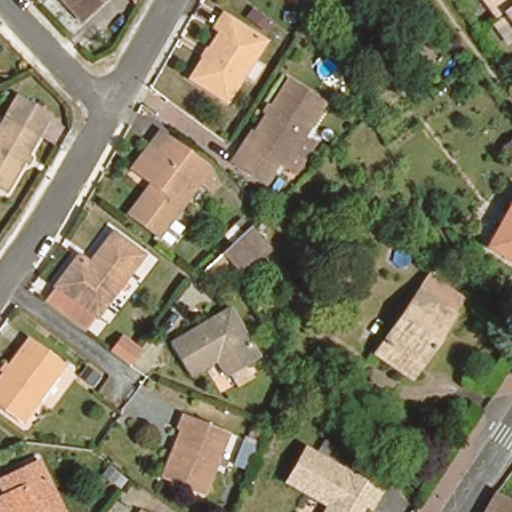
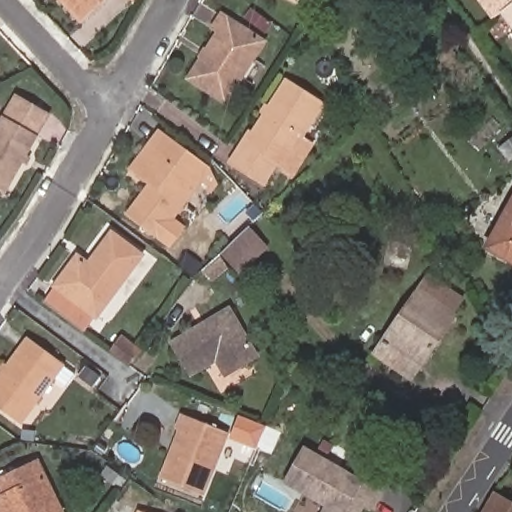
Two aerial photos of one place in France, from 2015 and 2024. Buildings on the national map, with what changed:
unchanged [(82,9),(80,11),(68,0),(91,0),(82,9)]
unchanged [(82,9),(91,0),(101,0),(85,17),(80,11),(82,9)]
unchanged [(130,5),(126,0),(133,0),(130,5)]
unchanged [(510,4),(500,11),(495,16),(483,0),(512,0),(512,3),(510,4)]
unchanged [(500,11),(510,4),(512,3),(512,27),(500,11)]
unchanged [(220,108),(185,85),(214,41),(207,37),(217,22),(257,48),(220,108)]
unchanged [(320,99),(276,163),(263,183),(226,158),(282,74),(320,99)]
unchanged [(4,185),(0,183),(0,112),(14,87),(46,107),(4,185)]
unchanged [(320,99),(326,105),(308,137),(317,144),(295,175),(276,163),(320,99)]
unchanged [(179,140),(208,159),(162,229),(132,209),(150,182),(134,171),(127,167),(145,140),(151,144),(167,154),(179,140)]
unchanged [(490,249),(512,209),(512,261),(490,249)]
unchanged [(222,252),(250,227),(261,241),(269,250),(258,260),(242,274),(234,265),(222,252)]
unchanged [(42,302),(52,286),(75,253),(89,262),(110,232),(148,259),(104,321),(95,315),(83,330),(42,302)]
unchanged [(234,272),(218,285),(209,274),(222,261),(234,272)]
unchanged [(393,363),(377,353),(421,286),(429,274),(463,297),(455,309),(460,311),(425,366),(418,379),(393,363)]
unchanged [(258,360),(225,378),(216,364),(191,378),(173,345),(229,311),(258,360)]
unchanged [(137,345),(127,358),(108,344),(118,331),(137,345)]
unchanged [(38,399),(22,422),(0,407),(0,375),(26,338),(62,363),(54,377),(59,380),(42,403),(38,399)]
unchanged [(79,375),(86,364),(101,375),(93,386),(79,375)]
unchanged [(222,438),(199,497),(157,480),(175,432),(172,431),(177,420),(222,438)]
unchanged [(371,512),(364,509),(363,512),(318,512),(321,507),(281,482),(305,443),(381,489),(373,512),(371,512)]
unchanged [(0,487),(6,484),(0,470),(41,452),(47,465),(65,501),(52,507),(55,512),(7,512),(0,497),(0,487)]
unchanged [(483,512),(512,468),(512,512),(483,512)]
unchanged [(164,512),(138,512),(142,502),(164,512)]

